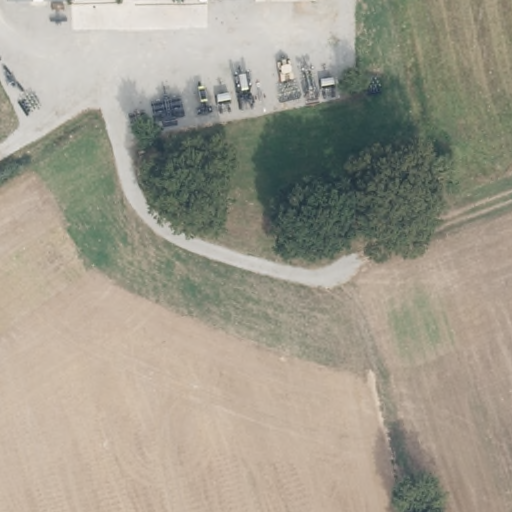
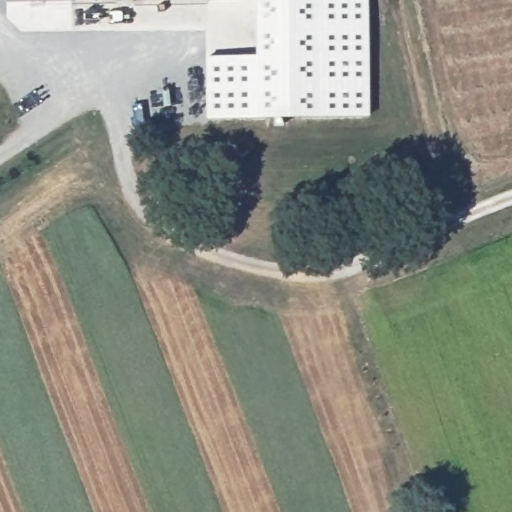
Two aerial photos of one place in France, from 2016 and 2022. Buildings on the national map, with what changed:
unchanged [(6,3),(6,0),(134,0),(6,3)]
new [(254,56),(254,0),(365,0),(367,116),(204,120),(203,56),(254,56)]

